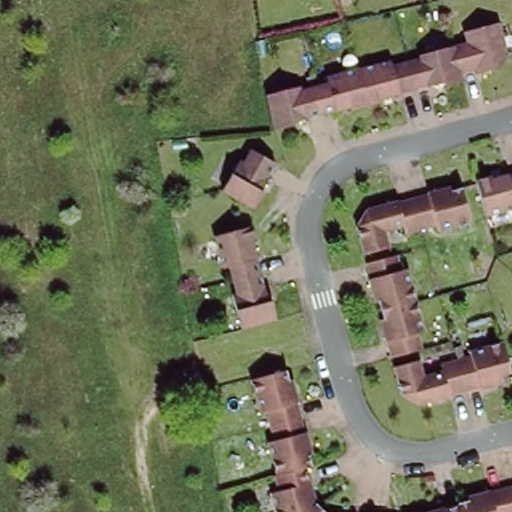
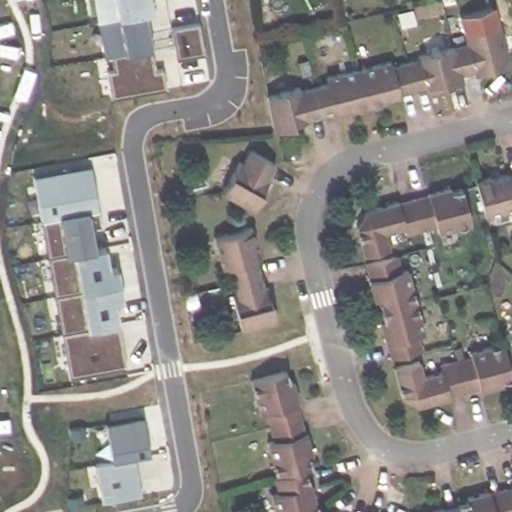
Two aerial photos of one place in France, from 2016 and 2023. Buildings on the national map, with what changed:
new [(112,97),(96,0),(152,0),(155,12),(148,14),(155,46),(158,70),(167,69),(170,87),(112,97)]
unchanged [(297,77),(324,70),(322,65),(355,56),(355,57),(387,50),(389,55),(417,49),(416,46),(464,35),(462,25),(494,17),(497,17),(502,35),(505,49),(498,62),(480,67),(480,64),(472,65),(472,64),(459,67),(461,75),(442,80),(441,77),(425,81),(425,80),(398,87),(399,89),(382,94),(382,95),(352,104),(350,100),(334,106),(334,105),(307,112),(307,113),(292,117),(292,120),(271,125),(264,82),(296,74),(297,77)]
unchanged [(239,154),(242,156),(250,143),(274,157),(267,170),(267,171),(260,185),(262,186),(252,204),(220,186),(239,154)]
new [(72,377),(35,175),(93,165),(104,226),(93,228),(97,247),(107,245),(112,268),(120,266),(127,301),(118,302),(122,324),(130,366),(72,377)]
unchanged [(474,175),(490,170),(490,172),(507,168),(507,170),(512,168),(512,203),(482,210),(474,175)]
unchanged [(425,197),(449,191),(450,195),(460,191),(469,226),(436,235),(434,229),(404,237),(402,231),(383,236),(387,252),(362,258),(355,230),(365,213),(396,205),(397,206),(426,198),(425,197)]
unchanged [(250,225),(254,240),(252,241),(256,258),(255,258),(263,285),(262,285),(267,300),(270,300),(275,319),(240,328),(230,293),(235,292),(227,266),(222,267),(213,235),(250,225)]
unchanged [(395,259),(399,275),(406,272),(422,336),(415,338),(420,353),(390,361),(385,346),(384,347),(378,324),(382,323),(377,305),(374,306),(367,283),(369,282),(365,267),(395,259)]
unchanged [(417,364),(422,382),(440,377),(439,370),(470,361),(468,356),(500,347),(510,382),(500,385),(502,388),(479,395),(478,391),(449,400),(449,401),(417,410),(400,398),(392,371),(417,364)]
unchanged [(280,495),(277,479),(275,480),(268,446),(275,445),(266,415),(260,416),(250,384),(285,373),(287,384),(290,383),(297,406),(295,406),(303,435),(305,435),(310,458),(307,459),(310,471),(304,472),(307,488),(310,487),(315,506),(320,512),(276,512),(272,497),(280,495)]
new [(154,455),(137,458),(145,494),(104,501),(97,462),(115,460),(108,422),(146,415),(154,455)]
unchanged [(455,506),(466,503),(465,500),(487,494),(488,495),(512,489),(512,512),(444,512),(457,509),(455,506)]
unchanged [(442,512),(438,512),(442,511),(442,512)]

